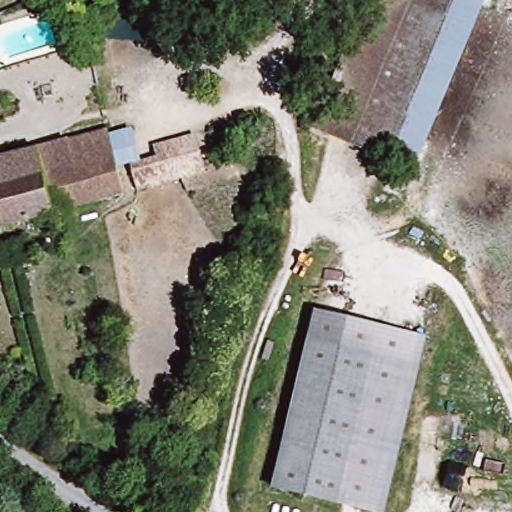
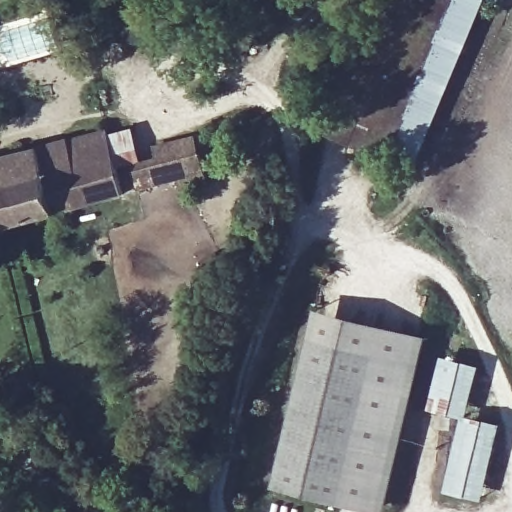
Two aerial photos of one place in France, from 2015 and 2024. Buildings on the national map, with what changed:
unchanged [(403,156),(328,127),(380,0),(467,0),(403,156)]
unchanged [(117,166),(124,189),(7,220),(0,222),(0,152),(105,125),(107,135),(117,166)]
unchanged [(135,128),(141,157),(158,153),(156,141),(197,132),(213,184),(188,190),(184,176),(140,187),(134,162),(117,166),(107,135),(135,128)]
unchanged [(387,512),(370,512),(272,487),(315,310),(427,336),(387,512)]
new [(427,409),(441,357),(479,366),(466,417),(500,423),(482,499),(444,491),(461,417),(427,409)]

